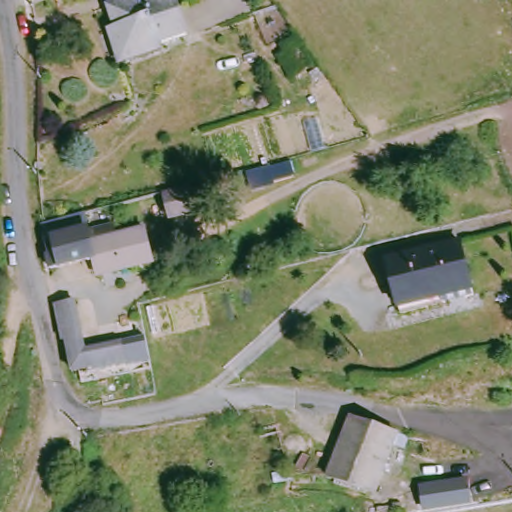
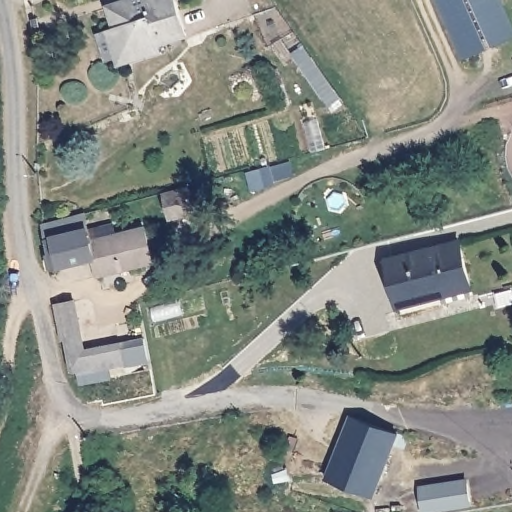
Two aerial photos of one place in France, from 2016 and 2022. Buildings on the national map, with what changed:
unchanged [(125,60),(110,12),(146,0),(174,0),(188,41),(125,60)]
new [(436,0),(502,0),(512,23),(512,40),(463,60),(436,0)]
unchanged [(287,40),(285,36),(294,30),(310,58),(294,64),(298,72),(289,77),(273,47),(287,40)]
unchanged [(182,191),(205,187),(208,206),(188,211),(158,219),(152,195),(182,187),(182,191)]
unchanged [(92,216),(94,243),(150,231),(160,267),(102,280),(98,265),(67,271),(62,250),(56,250),(50,231),(50,223),(92,216)]
unchanged [(453,236),(466,273),(471,288),(442,298),(439,291),(397,305),(383,258),(453,236)]
unchanged [(73,293),(88,345),(120,338),(125,360),(100,367),(90,366),(75,371),(72,364),(62,331),(52,297),(73,293)]
unchanged [(333,481),(342,455),(353,415),(397,429),(377,493),(333,481)]
unchanged [(428,485),(427,477),(465,474),(507,470),(510,500),(468,505),(430,510),(428,485)]

